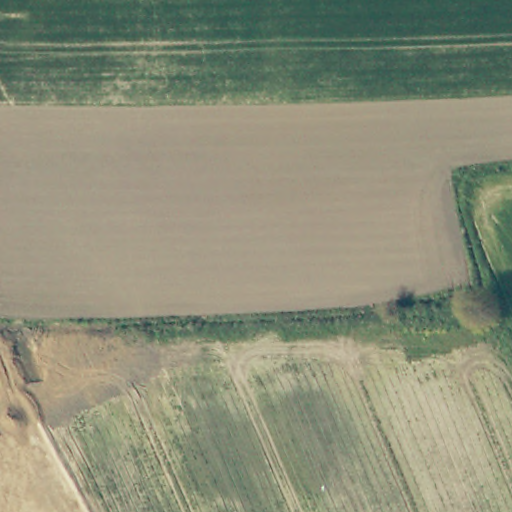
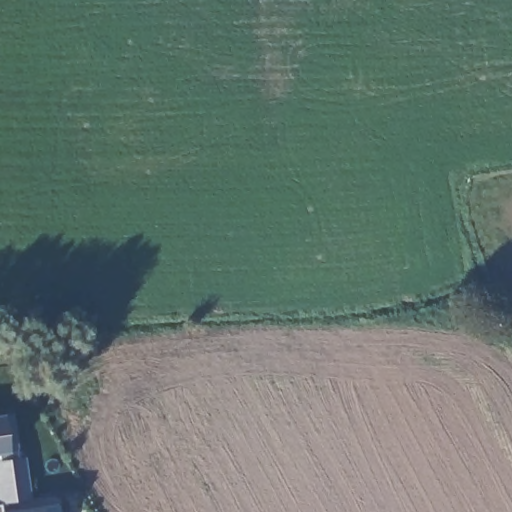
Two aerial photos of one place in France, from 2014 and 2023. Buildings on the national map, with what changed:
new [(0,415),(2,415),(14,412),(20,458),(25,457),(30,497),(0,501),(0,415)]
new [(6,512),(43,507),(60,505),(60,512),(6,512)]
new [(0,512),(0,510),(1,512),(0,512)]

